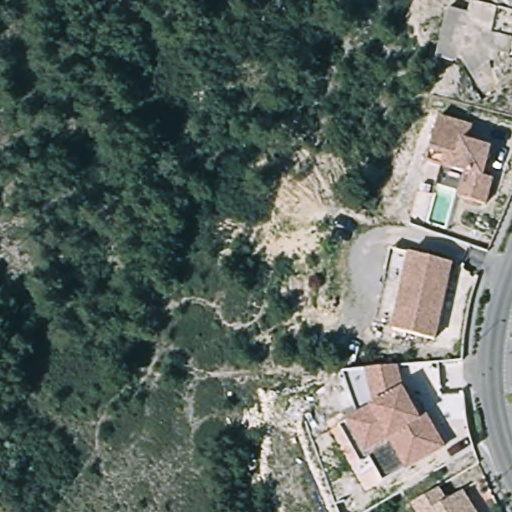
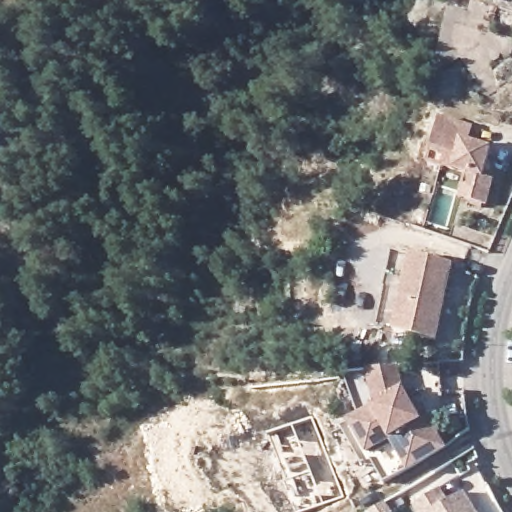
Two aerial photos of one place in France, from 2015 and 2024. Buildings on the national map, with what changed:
unchanged [(469,14),(466,27),(456,25),(451,44),(460,58),(453,62),(436,58),(448,9),(469,14)]
unchanged [(467,173),(443,168),(429,165),(431,154),(439,120),(473,128),(469,143),(491,148),(486,176),(494,178),(488,204),(467,199),(461,198),(467,173)]
unchanged [(400,323),(381,319),(395,253),(414,257),(400,323)]
unchanged [(441,332),(400,323),(414,257),(455,266),(441,332)]
unchanged [(378,455),(369,461),(346,424),(355,419),(381,403),(371,365),(403,362),(408,386),(426,415),(433,411),(452,442),(416,464),(392,479),(378,455)]
new [(297,512),(268,434),(311,416),(342,494),(302,512),(297,512)]
unchanged [(439,485),(447,498),(463,488),(478,512),(420,512),(413,501),(439,485)]

